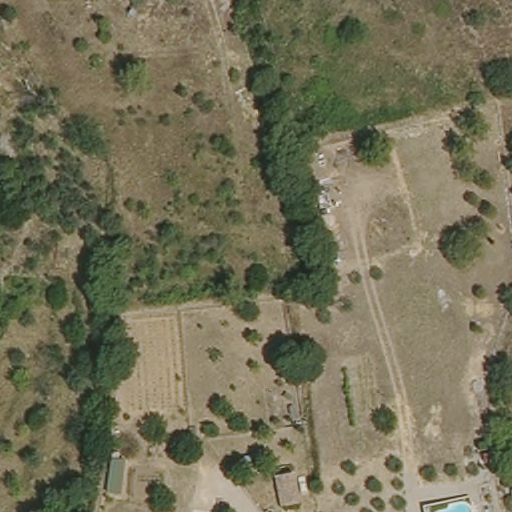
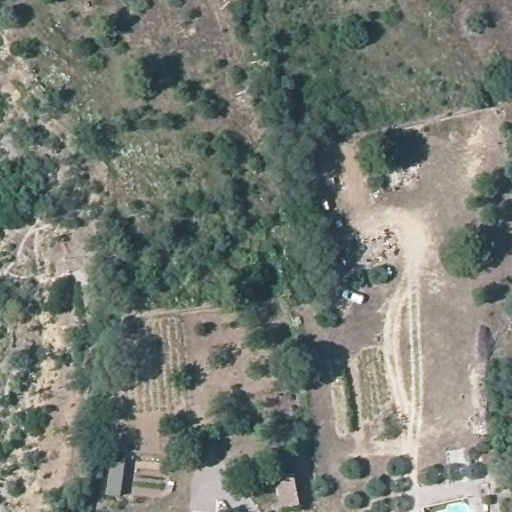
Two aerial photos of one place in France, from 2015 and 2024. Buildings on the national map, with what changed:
unchanged [(285,459),(304,457),(307,488),(288,490),(285,459)]

